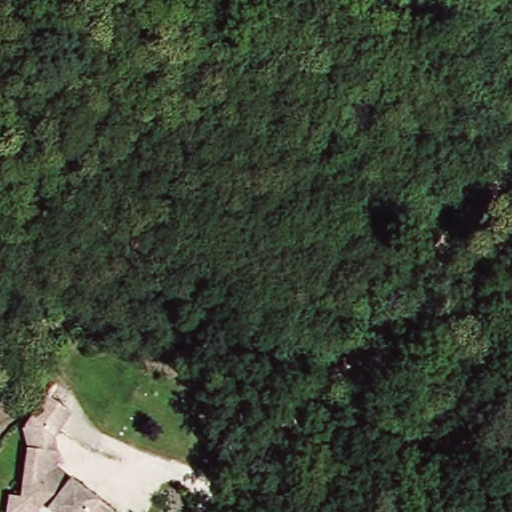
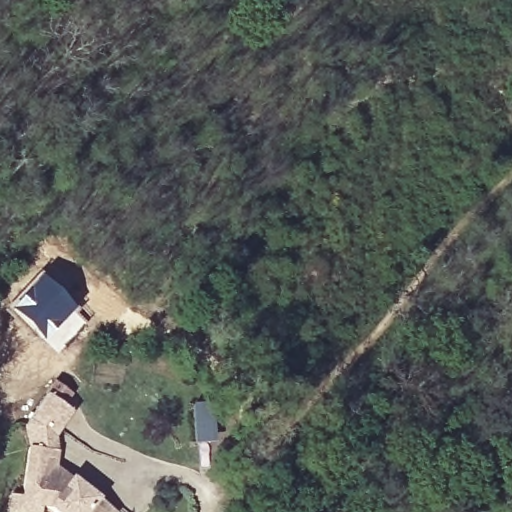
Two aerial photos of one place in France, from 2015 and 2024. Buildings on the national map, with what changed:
new [(89,320),(58,353),(45,342),(7,310),(42,271),(81,307),(79,310),(89,320)]
unchanged [(7,506),(20,508),(26,461),(23,426),(38,402),(62,418),(47,442),(55,465),(57,486),(92,512),(6,512),(7,506)]

